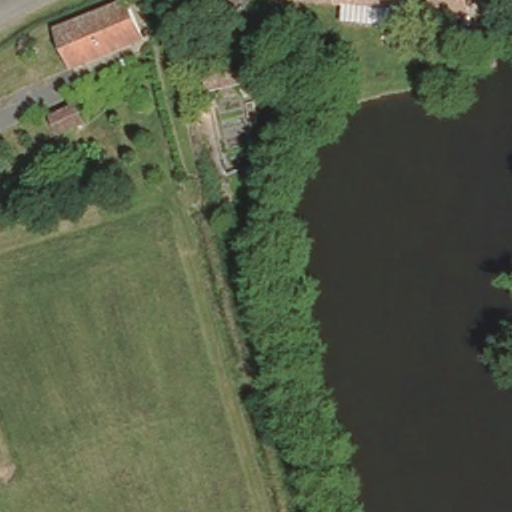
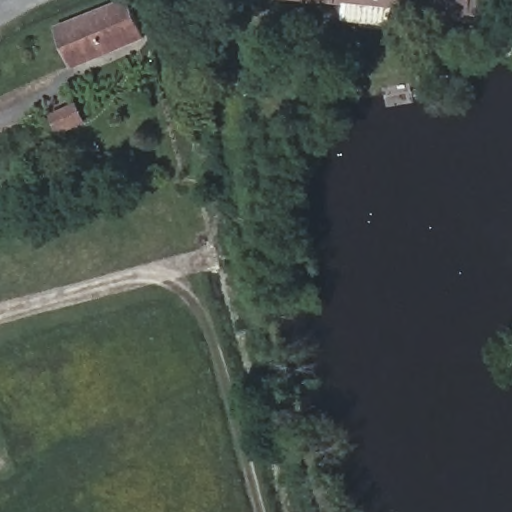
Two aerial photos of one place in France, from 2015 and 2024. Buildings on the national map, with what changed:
unchanged [(146,39),(73,66),(60,27),(132,0),(146,39)]
unchanged [(406,10),(283,0),(408,0),(406,10)]
unchanged [(408,0),(486,0),(485,16),(471,17),(468,36),(404,27),(406,10),(408,0)]
unchanged [(55,137),(46,113),(76,102),(86,127),(55,137)]

